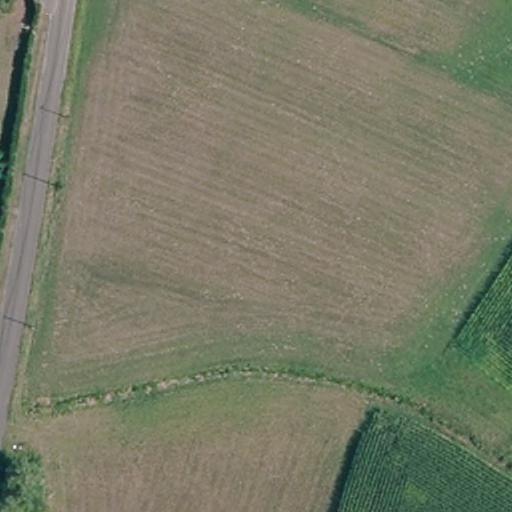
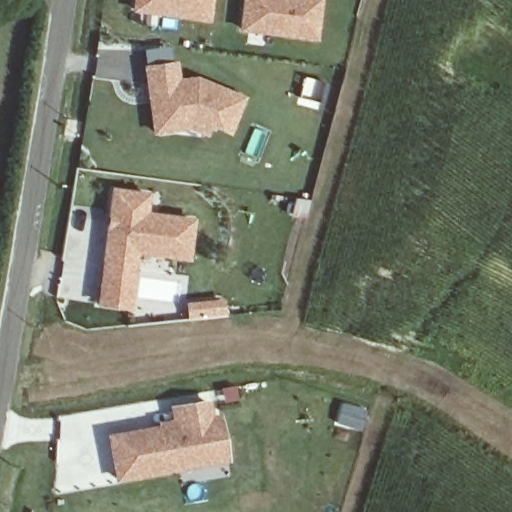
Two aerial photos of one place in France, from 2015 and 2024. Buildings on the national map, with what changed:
new [(132,12),(133,0),(212,0),(209,24),(132,12)]
new [(239,31),(242,0),(324,0),(319,41),(239,31)]
new [(178,61),(181,79),(198,76),(246,97),(229,135),(212,127),(207,136),(188,129),(152,135),(142,66),(178,61)]
new [(151,193),(148,211),(196,217),(191,261),(136,254),(130,309),(96,305),(112,188),(151,193)]
new [(233,448),(219,450),(124,466),(117,423),(187,412),(184,396),(216,390),(219,407),(227,406),(233,448)]

